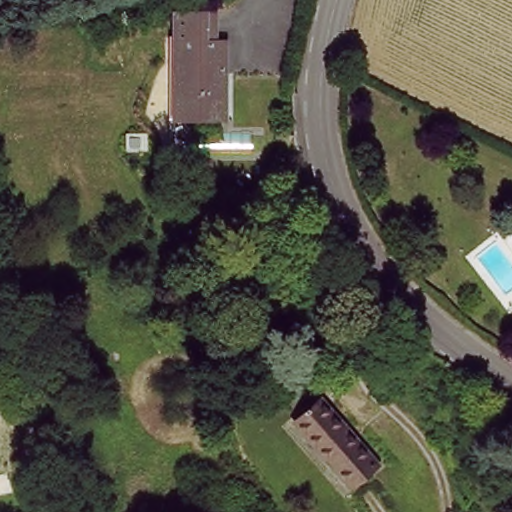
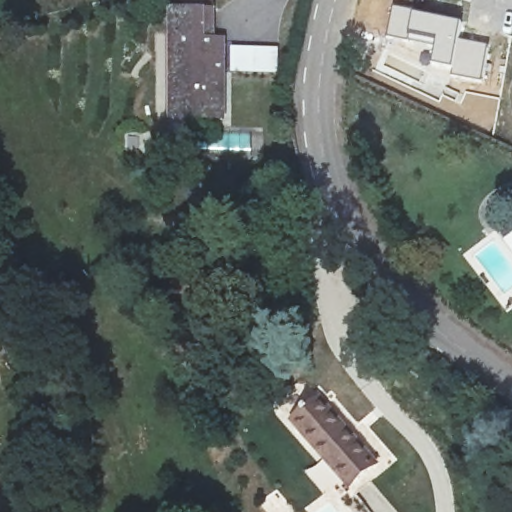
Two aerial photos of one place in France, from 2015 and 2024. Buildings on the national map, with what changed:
new [(413,11),(463,22),(460,39),(450,74),(429,67),(433,50),(407,45),(413,11)]
unchanged [(171,121),(173,15),(207,14),(206,41),(219,41),(219,120),(171,121)]
new [(450,74),(460,39),(489,44),(483,82),(449,77),(450,74)]
unchanged [(294,423),(318,405),(373,471),(350,491),(294,423)]

